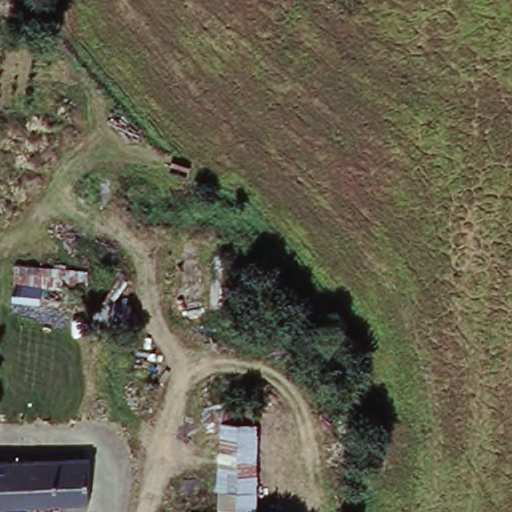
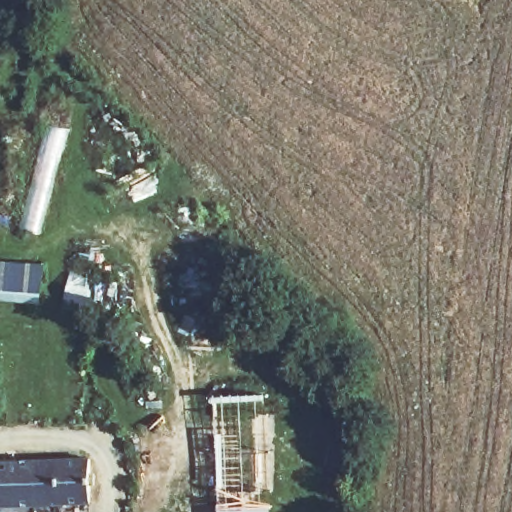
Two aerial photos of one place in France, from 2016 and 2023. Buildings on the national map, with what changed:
new [(40,302),(0,300),(0,260),(44,262),(40,302)]
demolished [(43,275),(42,293),(17,292),(17,274),(43,275)]
unchanged [(0,463),(97,465),(95,493),(94,510),(0,510),(0,463)]
demolished [(178,496),(219,498),(225,500),(224,512),(178,512),(178,496)]

